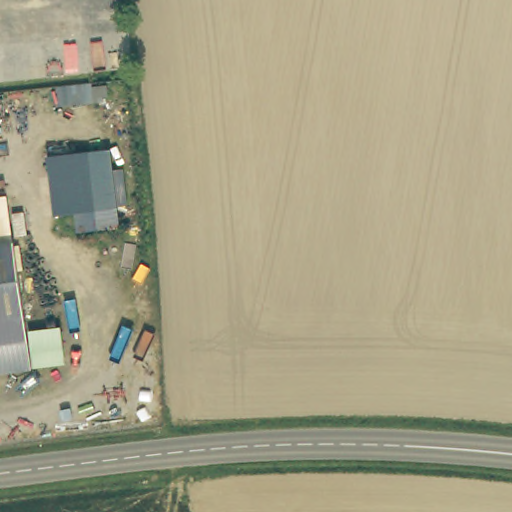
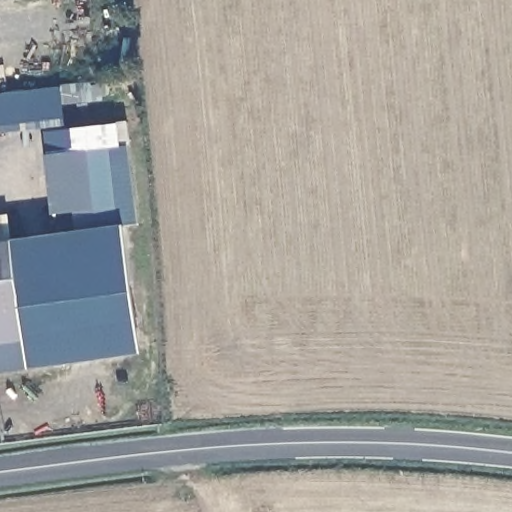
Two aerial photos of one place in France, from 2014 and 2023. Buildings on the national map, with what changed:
new [(0,93),(61,86),(65,125),(0,132),(0,93)]
new [(12,240),(76,231),(76,232),(119,227),(116,206),(127,204),(123,168),(112,169),(110,149),(128,146),(137,223),(124,225),(140,353),(30,366),(12,240)]
unchanged [(110,149),(112,169),(123,168),(127,204),(116,206),(119,227),(76,232),(74,212),(54,214),(46,155),(110,149)]
unchanged [(0,195),(5,195),(12,240),(0,241),(0,195)]
unchanged [(27,343),(30,366),(0,370),(0,241),(12,240),(27,343)]

